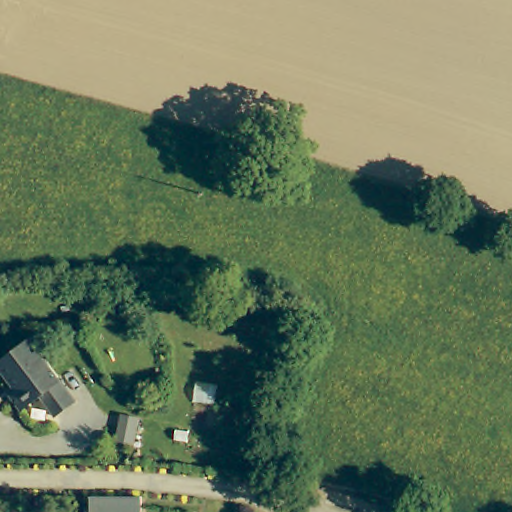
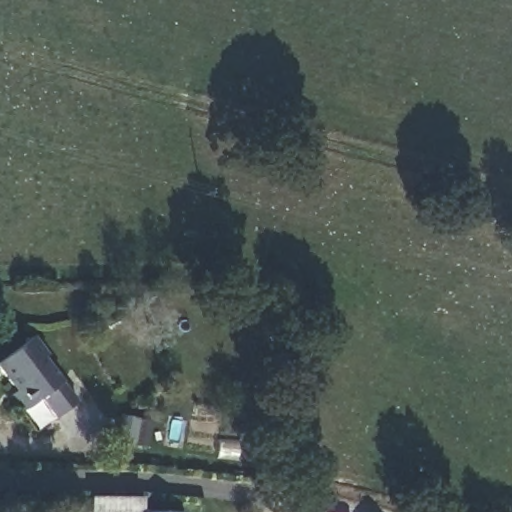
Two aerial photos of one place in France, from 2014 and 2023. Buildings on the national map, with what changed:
unchanged [(43,352),(74,398),(53,413),(39,393),(18,407),(6,391),(14,386),(0,366),(0,355),(34,331),(47,350),(43,352)]
unchanged [(136,417),(131,442),(111,437),(116,413),(136,417)]
unchanged [(140,512),(90,512),(91,493),(141,495),(140,512)]

